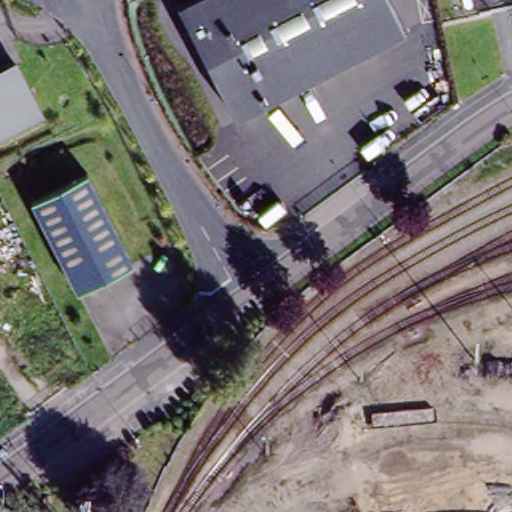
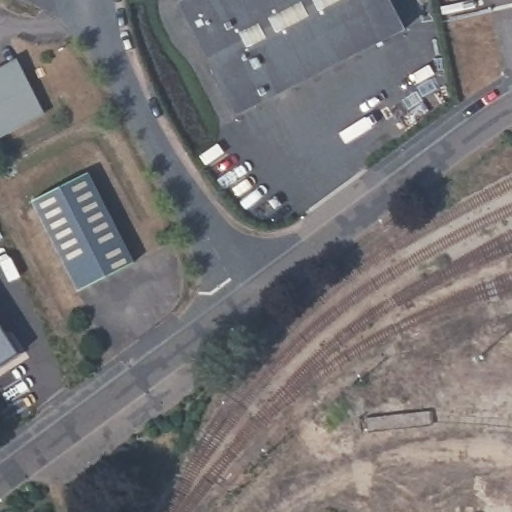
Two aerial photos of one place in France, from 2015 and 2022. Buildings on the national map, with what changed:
unchanged [(405,30),(237,117),(179,3),(185,0),(390,0),(405,30)]
unchanged [(22,70),(45,115),(0,138),(0,81),(22,70)]
unchanged [(33,205),(89,176),(135,266),(80,295),(33,205)]
new [(21,358),(0,372),(0,326),(21,358)]

